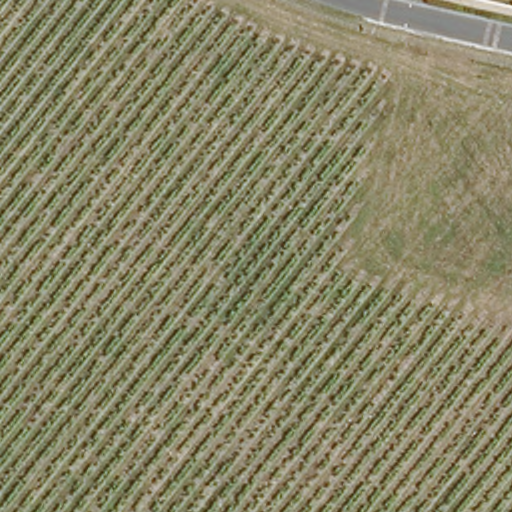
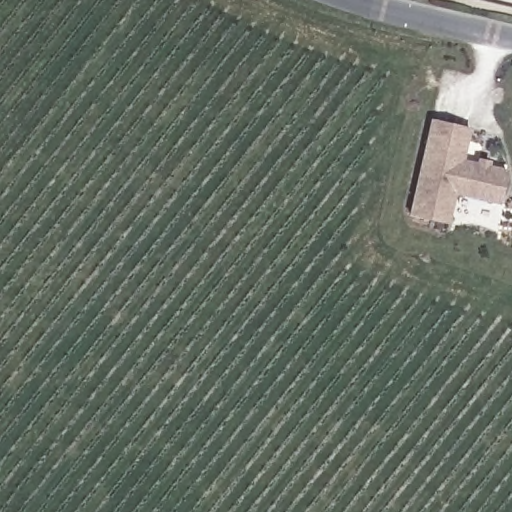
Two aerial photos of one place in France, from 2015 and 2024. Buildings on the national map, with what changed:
new [(500,205),(455,193),(448,222),(407,213),(432,120),(469,128),(462,160),(474,162),(476,156),(493,161),(490,165),(510,168),(500,205)]

